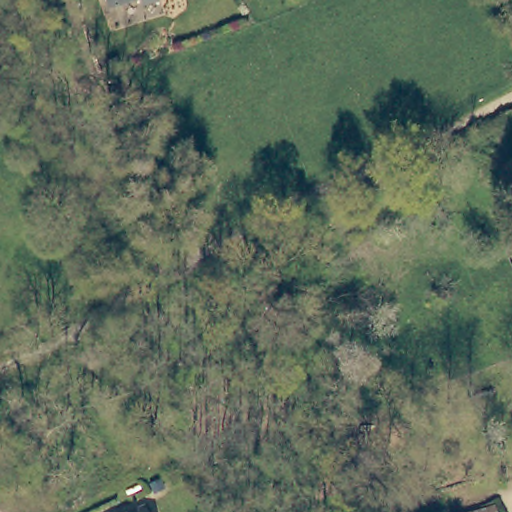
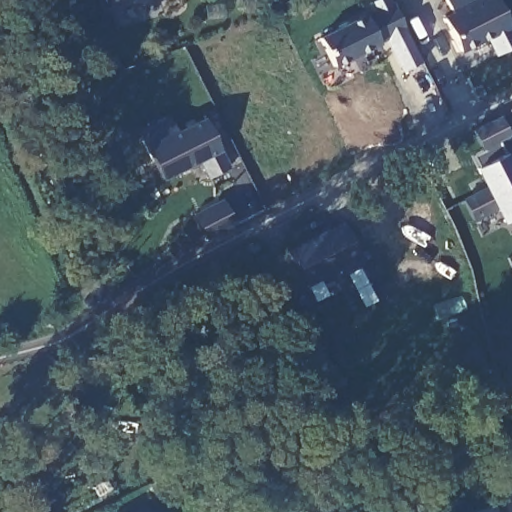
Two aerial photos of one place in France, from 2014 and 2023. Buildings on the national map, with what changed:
unchanged [(144,10),(142,2),(109,12),(105,0),(159,0),(161,5),(144,10)]
new [(387,35),(377,40),(379,45),(334,67),(321,38),(366,15),(369,20),(376,17),(368,3),(375,0),(390,0),(422,62),(406,71),(387,35)]
new [(487,40),(461,55),(442,17),(475,0),(496,0),(512,29),(512,47),(496,55),(487,40)]
new [(170,114),(179,131),(204,117),(222,151),(232,167),(206,180),(200,164),(162,181),(137,134),(170,114)]
new [(506,154),(509,152),(512,158),(512,220),(502,225),(496,212),(473,221),(461,197),(483,188),(475,169),(480,166),(473,155),(483,151),(472,131),(501,115),(512,137),(512,138),(500,145),(506,154)]
new [(344,276),(341,269),(304,287),(286,250),(343,222),(363,265),(344,276)]
unchanged [(495,505),(498,512),(478,512),(495,505)]
unchanged [(150,511),(150,512),(149,512),(150,511)]

